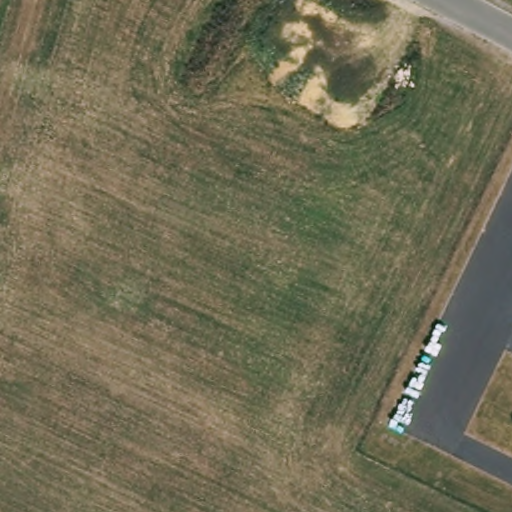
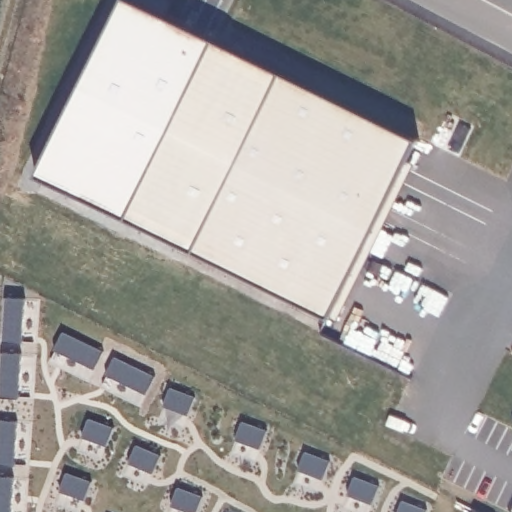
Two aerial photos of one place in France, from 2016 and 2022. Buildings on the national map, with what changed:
new [(415,137),(328,313),(129,215),(217,37),(415,137)]
new [(7,298),(26,300),(23,345),(4,343),(7,298)]
new [(63,333),(104,353),(95,370),(54,350),(63,333)]
new [(3,353),(22,354),(19,400),(0,398),(3,353)]
new [(114,358),(155,378),(146,395),(106,375),(114,358)]
new [(170,388),(195,398),(188,416),(163,406),(170,388)]
new [(89,420),(114,429),(107,447),(82,437),(89,420)]
new [(18,421),(15,467),(0,466),(0,421),(18,421)]
new [(242,422),(267,431),(260,450),(235,440),(242,422)]
new [(136,445),(161,457),(153,475),(129,463),(136,445)]
new [(305,452),(330,461),(323,480),(298,470),(305,452)]
new [(67,473),(92,482),(85,501),(61,492),(67,473)]
new [(354,476),(379,486),(372,505),(347,495),(354,476)]
new [(15,477),(12,512),(0,512),(0,477),(15,477)]
new [(203,497),(197,512),(187,512),(171,505),(178,487),(203,497)]
new [(427,510),(426,512),(397,512),(401,500),(427,510)]

